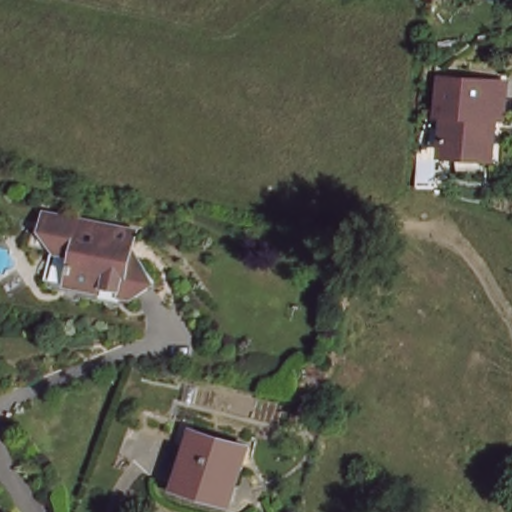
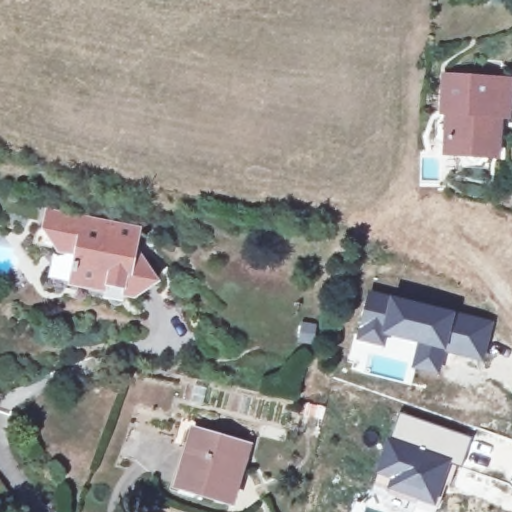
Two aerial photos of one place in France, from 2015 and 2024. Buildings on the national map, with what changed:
unchanged [(484,164),(459,161),(460,151),(442,149),(445,117),(433,117),(440,84),(507,89),(503,124),(497,164),(484,164)]
unchanged [(133,229),(130,260),(141,260),(156,280),(134,298),(123,287),(107,285),(100,290),(88,290),(75,288),(79,255),(61,253),(62,242),(48,240),(40,232),(42,214),(133,229)]
new [(410,368),(417,343),(387,336),(385,348),(355,339),(369,289),(495,319),(485,361),(445,352),(439,375),(410,368)]
new [(400,411),(472,436),(462,467),(454,464),(454,461),(388,436),(400,411)]
unchanged [(245,443),(230,503),(172,486),(187,427),(245,443)]
new [(380,454),(388,436),(454,461),(454,464),(437,509),(372,485),(380,454)]

